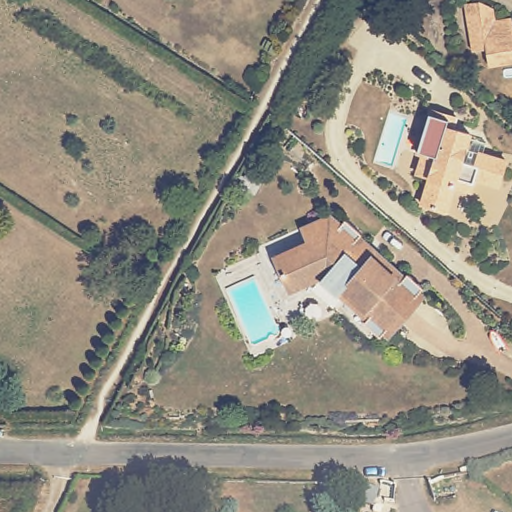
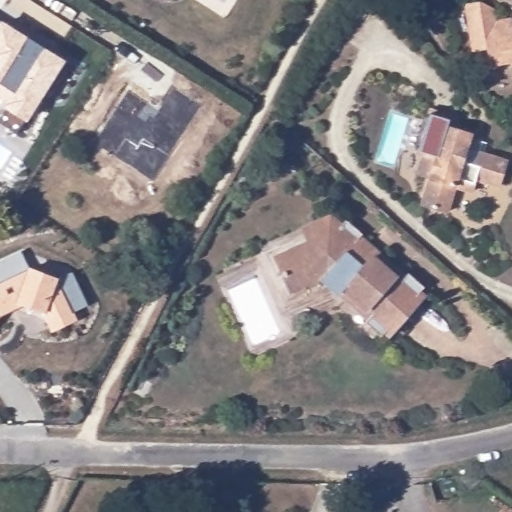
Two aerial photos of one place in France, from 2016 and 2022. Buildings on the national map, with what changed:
unchanged [(512,5),(512,43),(491,47),(488,34),(476,36),(471,10),(454,12),(452,2),(469,0),(493,0),(495,8),(512,5)]
new [(17,130),(0,120),(0,117),(12,99),(0,92),(0,19),(63,59),(17,130)]
unchanged [(427,156),(423,155),(429,135),(420,132),(428,107),(460,118),(457,130),(476,135),(475,139),(491,143),(488,153),(512,160),(506,185),(483,180),(479,192),(462,189),(455,215),(427,206),(436,177),(423,173),(427,156)]
unchanged [(366,243),(362,247),(374,258),(378,254),(402,275),(405,271),(421,285),(418,290),(422,293),(387,335),(382,330),(377,335),(363,321),(363,316),(341,295),(343,291),(324,272),(287,288),(272,254),(309,238),(303,222),(331,212),(338,222),(344,215),(360,230),(357,234),(366,243)]
new [(29,265),(59,276),(72,270),(88,304),(74,311),(78,320),(51,330),(41,309),(27,303),(1,315),(0,316),(0,258),(21,249),(29,265)]
unchanged [(218,512),(209,512),(211,508),(218,512)]

